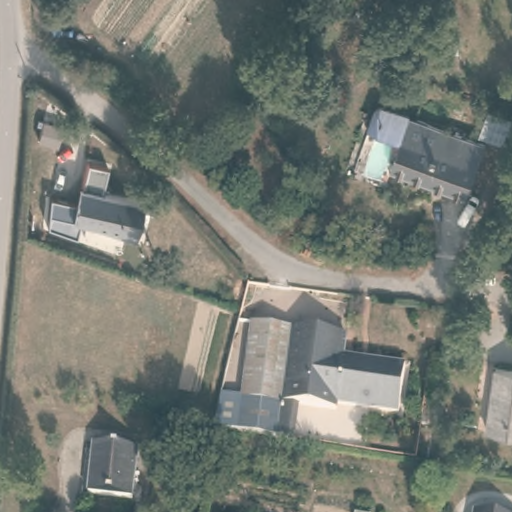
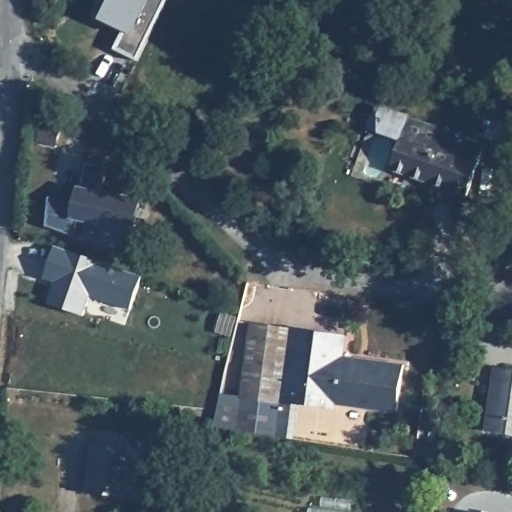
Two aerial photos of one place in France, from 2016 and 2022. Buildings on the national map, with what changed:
new [(115,50),(127,33),(100,21),(111,0),(171,0),(142,63),(115,50)]
unchanged [(329,12),(318,6),(321,0),(335,0),(336,1),(329,12)]
unchanged [(459,40),(460,51),(438,53),(437,41),(459,40)]
unchanged [(512,145),(474,131),(484,104),(512,113),(512,145)]
unchanged [(481,140),(463,193),(387,165),(405,113),(481,140)]
unchanged [(79,221),(76,237),(46,227),(48,198),(77,204),(86,163),(106,167),(101,193),(141,201),(133,237),(125,235),(79,221)]
new [(132,310),(93,295),(85,317),(47,304),(55,284),(44,279),(57,245),(144,277),(132,310)]
unchanged [(243,400),(238,431),(212,427),(219,396),(243,399),(253,324),(346,337),(342,361),(337,405),(336,411),(299,406),(296,440),(279,438),(282,404),(243,400)]
unchanged [(366,365),(368,361),(405,366),(399,413),(337,405),(342,361),(366,365)]
unchanged [(512,435),(487,432),(497,367),(512,369),(512,435)]
unchanged [(132,499),(88,494),(93,445),(137,449),(132,499)]

